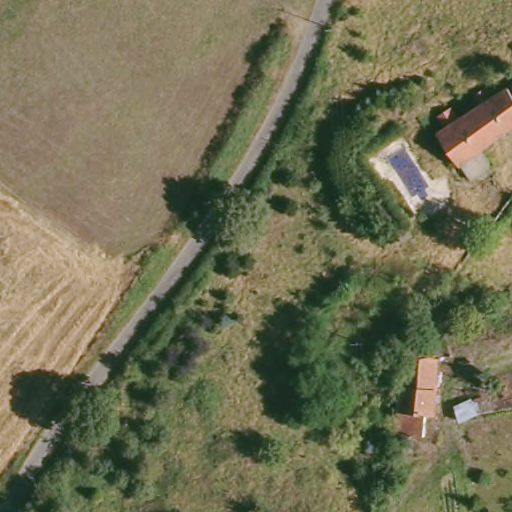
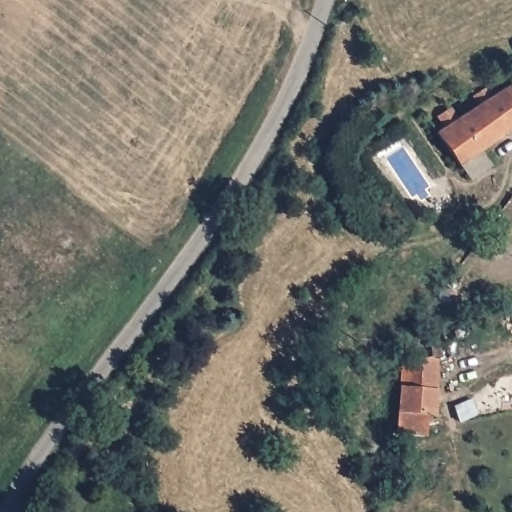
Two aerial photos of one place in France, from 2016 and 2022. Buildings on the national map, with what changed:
unchanged [(492,110),(450,137),(442,121),(452,110),(478,95),(483,99),(493,87),(505,97),(512,92),(512,132),(508,135),(492,110)]
unchanged [(450,137),(492,110),(508,135),(465,165),(450,137)]
unchanged [(394,435),(400,408),(402,380),(405,355),(439,360),(439,362),(432,410),(425,410),(422,428),(421,435),(402,433),(394,435)]
unchanged [(477,419),(458,424),(448,410),(466,405),(477,419)]

